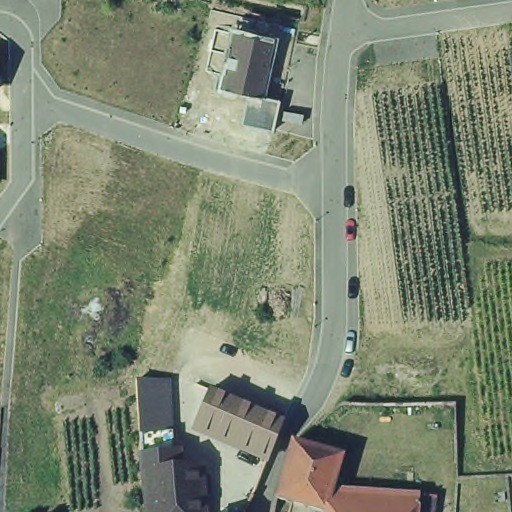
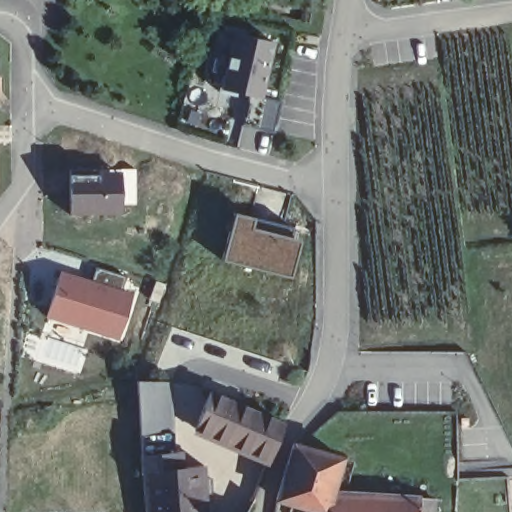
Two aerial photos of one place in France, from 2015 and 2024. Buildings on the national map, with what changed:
unchanged [(276,38),(264,96),(279,100),(272,131),(242,125),(247,99),(217,91),(231,29),(276,38)]
new [(97,169),(97,174),(122,175),(122,215),(70,215),(69,169),(97,169)]
new [(253,219),(252,228),(299,241),(290,278),(222,261),(233,214),(253,219)]
new [(45,314),(58,271),(89,281),(94,265),(125,275),(120,290),(130,294),(117,336),(45,314)]
unchanged [(140,466),(136,381),(176,384),(182,467),(141,471),(140,466)]
unchanged [(242,408),(243,409),(232,437),(193,422),(205,393),(242,408)]
unchanged [(266,452),(232,438),(232,437),(243,409),(277,424),(266,452)]
unchanged [(341,462),(332,495),(326,512),(301,512),(275,503),(277,498),(292,449),(341,462)]
unchanged [(141,471),(182,467),(202,465),(204,512),(145,512),(141,471)]
unchanged [(418,502),(417,512),(326,512),(332,495),(418,502)]

